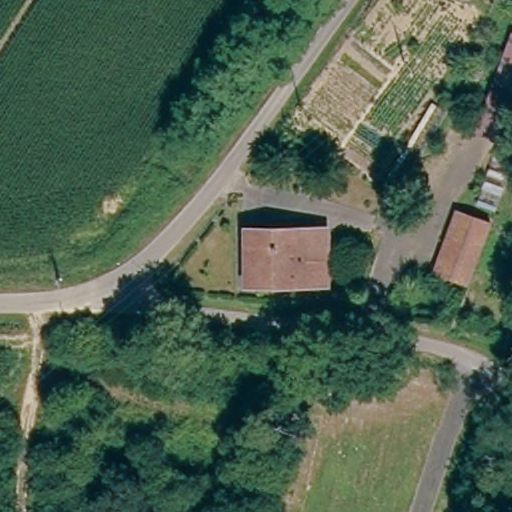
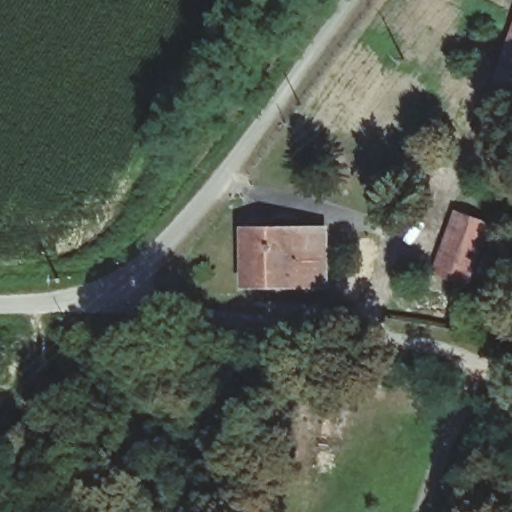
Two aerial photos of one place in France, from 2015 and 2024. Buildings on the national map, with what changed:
unchanged [(512,35),(512,190),(508,201),(483,194),(502,143),(474,133),(512,35)]
unchanged [(473,286),(435,272),(458,210),(496,222),(473,286)]
unchanged [(248,284),(247,231),(324,226),(325,282),(248,284)]

